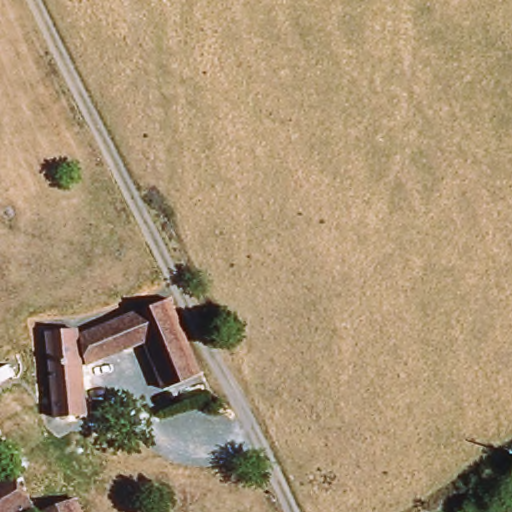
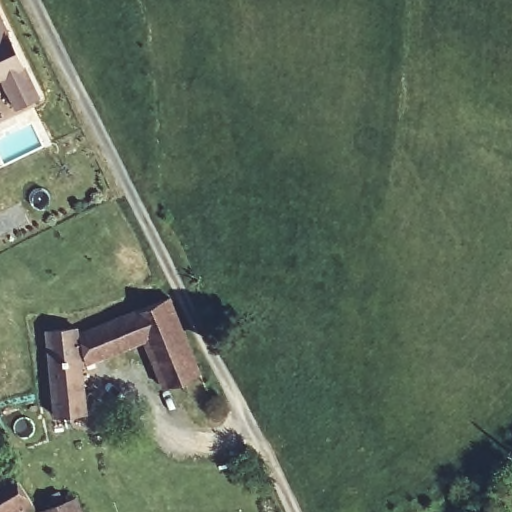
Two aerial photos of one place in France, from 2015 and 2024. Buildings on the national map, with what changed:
new [(12,111),(0,83),(0,26),(33,101),(12,111)]
unchanged [(88,366),(78,337),(168,302),(202,376),(166,390),(145,342),(88,366)]
unchanged [(76,338),(85,416),(53,420),(46,350),(44,335),(75,331),(76,338)]
unchanged [(31,507),(24,512),(0,512),(0,477),(8,472),(31,507)]
unchanged [(73,500),(77,512),(44,512),(73,500)]

